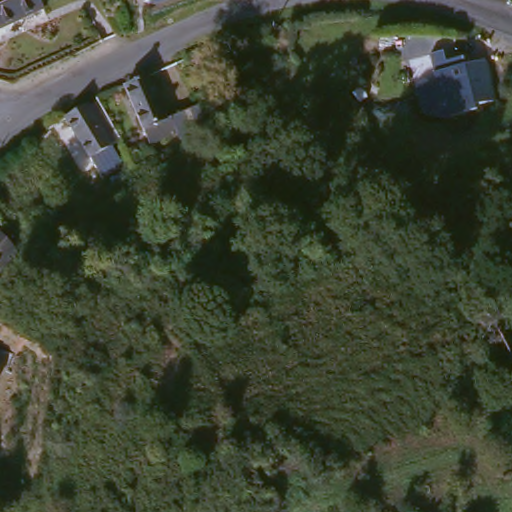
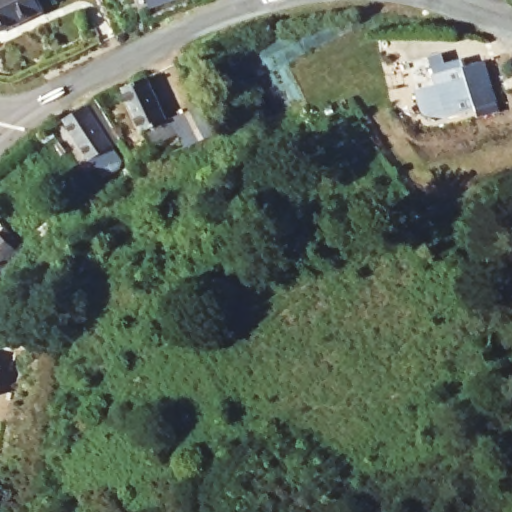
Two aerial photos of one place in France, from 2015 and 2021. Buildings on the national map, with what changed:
unchanged [(43,0),(46,8),(0,29),(0,0),(43,0)]
unchanged [(444,48),(447,61),(466,56),(469,68),(486,64),(495,101),(424,123),(415,91),(435,80),(431,50),(444,48)]
unchanged [(161,135),(138,144),(113,86),(135,79),(148,109),(154,117),(182,105),(197,138),(169,151),(161,135)]
unchanged [(110,144),(117,151),(100,165),(63,123),(86,104),(118,138),(110,144)]
unchanged [(25,243),(0,265),(0,236),(10,228),(25,243)]

